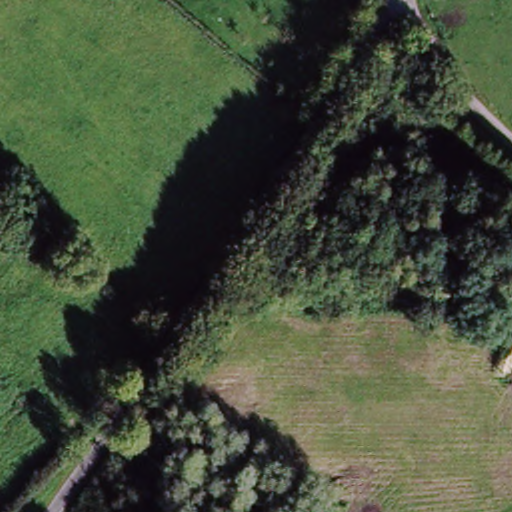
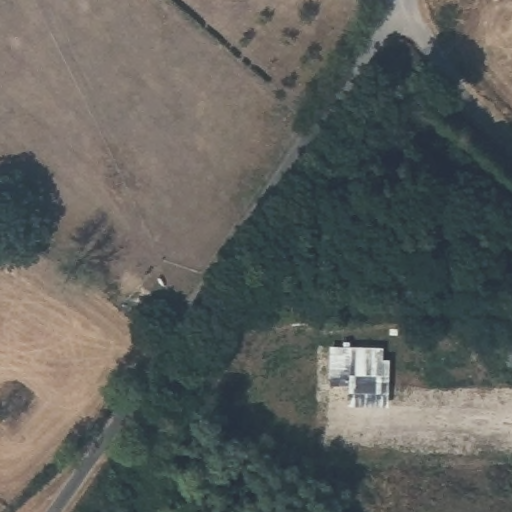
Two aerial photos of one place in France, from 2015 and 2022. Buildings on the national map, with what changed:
new [(348,404),(349,383),(329,385),(329,345),(384,346),(384,358),(389,358),(388,406),(348,404)]

